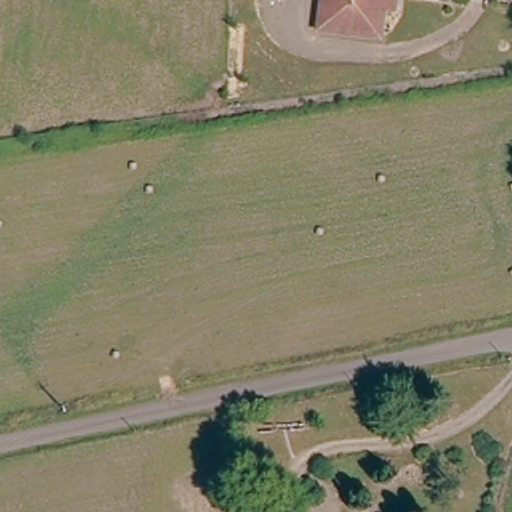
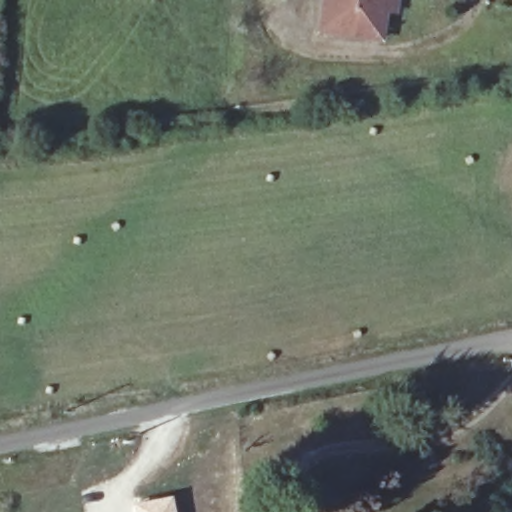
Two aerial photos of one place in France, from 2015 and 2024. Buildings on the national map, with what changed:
unchanged [(318,25),(321,0),(386,0),(397,0),(396,6),(385,5),(381,34),(318,25)]
new [(131,502),(171,495),(174,512),(133,512),(131,502)]

